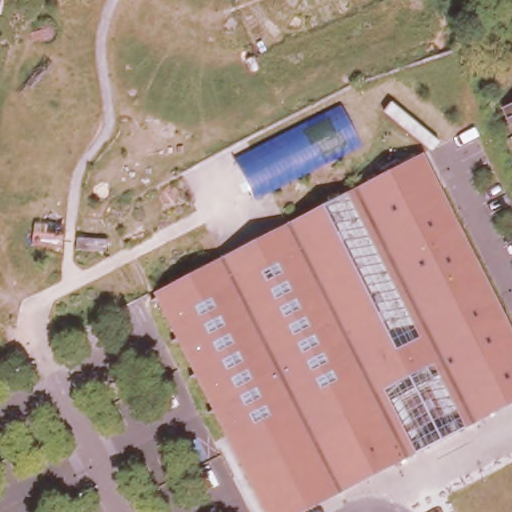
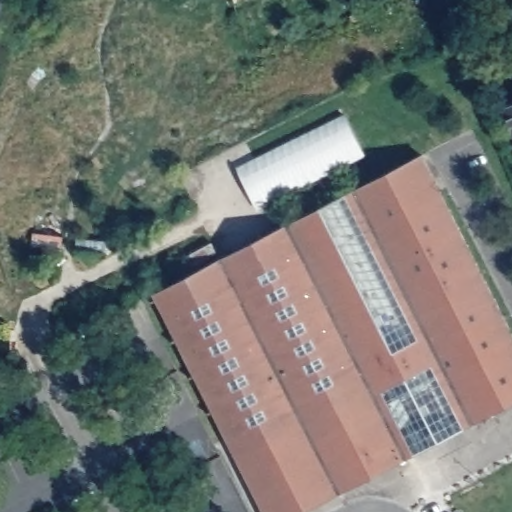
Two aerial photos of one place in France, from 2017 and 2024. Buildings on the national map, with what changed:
unchanged [(504,109),(512,105),(512,127),(504,109)]
unchanged [(232,157),(339,106),(360,147),(253,199),(232,157)]
unchanged [(512,334),(512,401),(299,512),(264,512),(153,293),(421,154),(512,334)]

